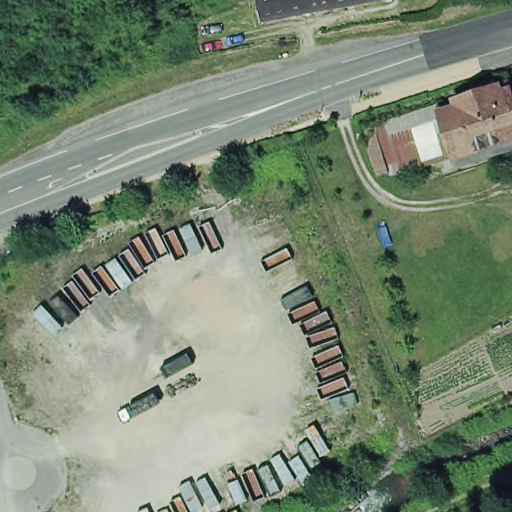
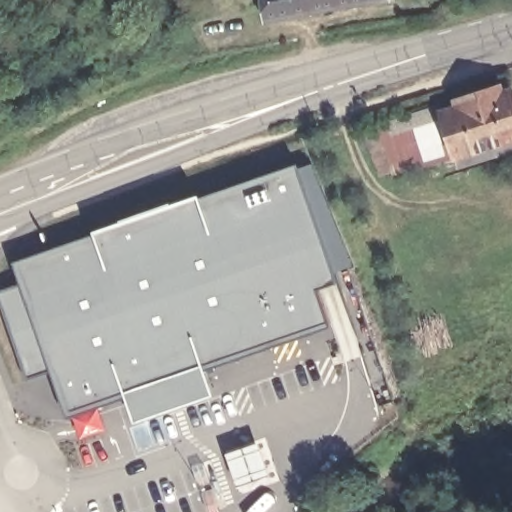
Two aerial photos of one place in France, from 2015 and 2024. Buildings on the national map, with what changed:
unchanged [(265,26),(259,0),(392,0),(265,26)]
unchanged [(437,119),(453,114),(452,107),(505,89),(507,96),(512,95),(512,146),(452,166),(449,160),(437,119)]
unchanged [(434,112),(437,119),(449,160),(387,180),(372,131),(434,112)]
new [(312,293),(322,328),(197,370),(208,400),(127,427),(118,400),(70,415),(55,373),(28,382),(0,302),(0,292),(25,284),(18,266),(97,239),(96,237),(201,201),(202,202),(293,171),(333,286),(312,293)]

